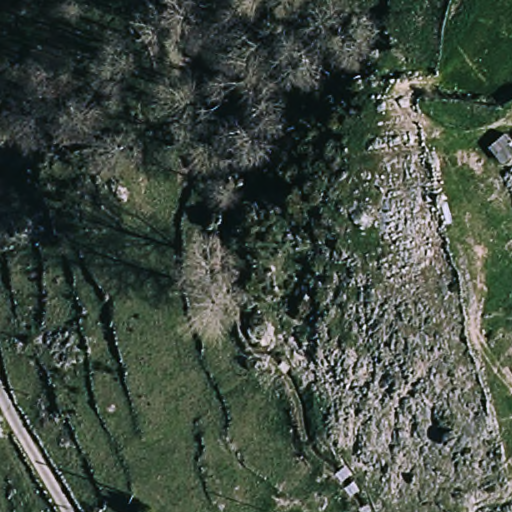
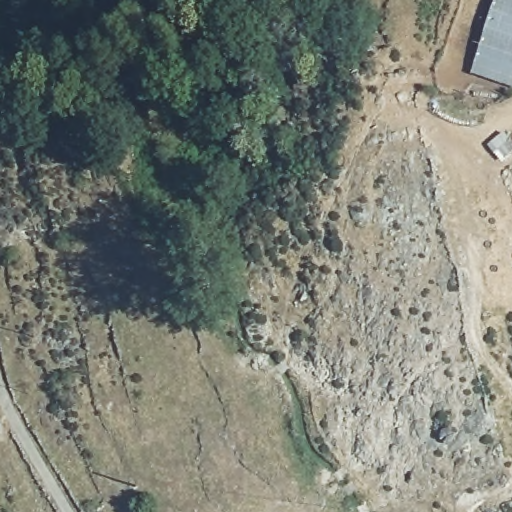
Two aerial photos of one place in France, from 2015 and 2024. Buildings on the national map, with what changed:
new [(512,0),(512,88),(471,74),(494,0),(512,0)]
unchanged [(512,143),(512,157),(502,166),(487,147),(504,134),(512,143)]

